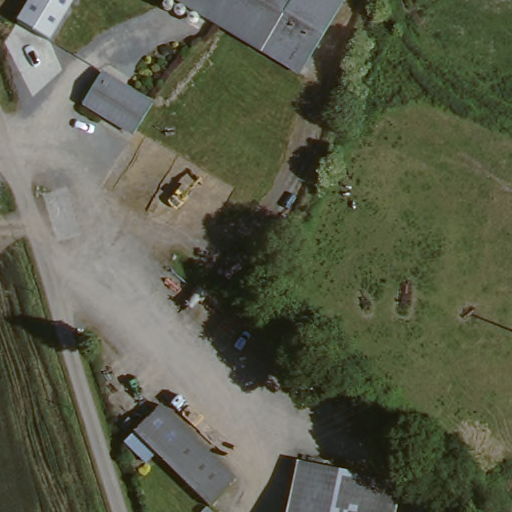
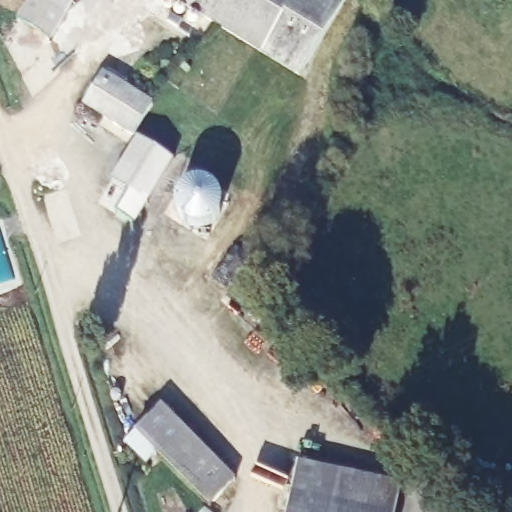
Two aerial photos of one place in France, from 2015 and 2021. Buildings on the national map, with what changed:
unchanged [(30,0),(74,0),(51,40),(17,21),(30,0)]
unchanged [(167,0),(342,0),(343,1),(297,78),(167,0)]
unchanged [(99,77),(150,108),(133,139),(81,108),(99,77)]
new [(111,180),(138,139),(173,161),(148,203),(111,180)]
new [(182,187),(191,181),(199,180),(208,182),(216,188),(221,198),(222,209),(218,218),(211,224),(201,227),(193,226),(184,222),(178,215),(176,206),(176,199),(178,192),(182,187)]
unchanged [(163,408),(233,486),(206,511),(156,454),(143,464),(123,443),(163,408)]
unchanged [(399,484),(394,512),(286,512),(294,465),(399,484)]

